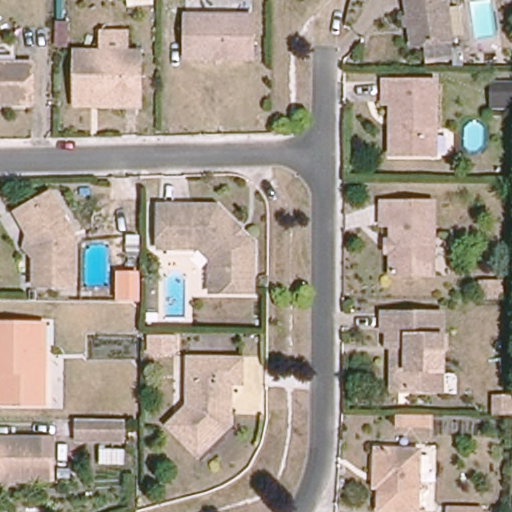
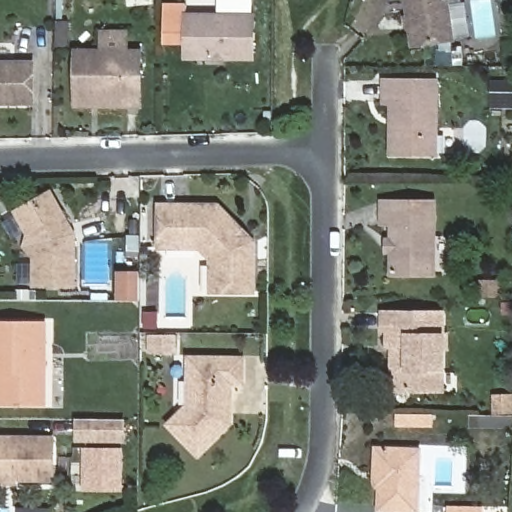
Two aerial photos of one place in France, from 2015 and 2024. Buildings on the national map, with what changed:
unchanged [(407,0),(448,0),(453,40),(413,46),(407,0)]
unchanged [(254,16),(254,59),(187,59),(187,16),(254,16)]
unchanged [(74,107),(72,49),(97,49),(98,30),(128,31),(126,49),(142,49),(141,108),(74,107)]
unchanged [(29,60),(29,99),(0,98),(0,60),(29,60)]
unchanged [(397,104),(385,104),(385,82),(438,82),(437,156),(397,155),(397,104)]
unchanged [(512,106),(492,106),(492,86),(512,86),(512,106)]
unchanged [(26,214),(55,197),(77,236),(76,283),(43,283),(44,246),(26,214)]
unchanged [(383,203),(435,204),(435,274),(392,274),(393,224),(383,224),(383,203)]
unchanged [(255,242),(255,292),(211,292),(212,261),(201,249),(160,249),(160,206),(219,207),(255,242)]
new [(123,275),(142,275),(143,280),(142,300),(122,300),(123,280),(123,275)]
unchanged [(498,281),(498,296),(482,296),(483,281),(498,281)]
unchanged [(445,315),(444,391),(403,391),(403,374),(398,369),(398,347),(388,347),(388,331),(383,331),(383,314),(445,315)]
unchanged [(44,406),(0,405),(0,372),(4,372),(4,365),(0,365),(0,325),(35,325),(35,345),(45,345),(44,406)]
unchanged [(169,338),(169,353),(154,353),(154,338),(169,338)]
unchanged [(199,456),(170,426),(189,407),(190,359),(244,359),(244,383),(232,383),(231,425),(199,456)]
unchanged [(511,397),(511,412),(498,412),(498,397),(511,397)]
unchanged [(396,432),(395,416),(431,416),(431,430),(396,432)]
unchanged [(129,421),(128,439),(128,441),(67,440),(67,421),(129,421)]
unchanged [(0,480),(0,439),(54,440),(54,481),(0,480)]
new [(85,447),(124,448),(123,491),(85,491),(85,447)]
unchanged [(420,451),(419,512),(409,512),(380,511),(380,487),(381,475),(376,474),(377,450),(420,451)]
new [(49,507),(49,512),(20,512),(20,507),(49,507)]
unchanged [(485,508),(484,512),(448,512),(448,508),(485,508)]

